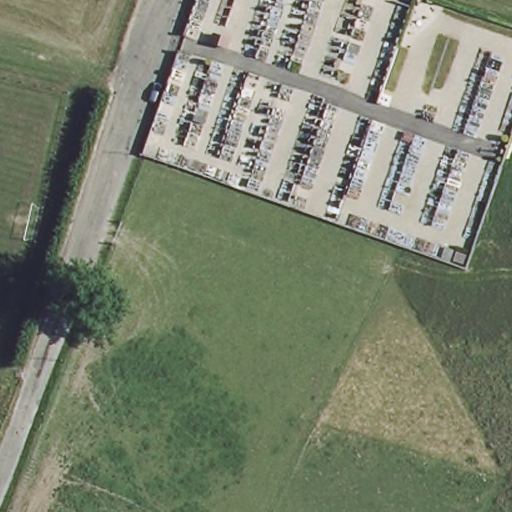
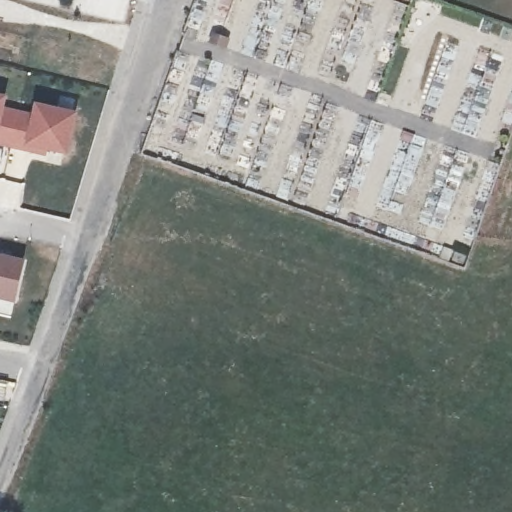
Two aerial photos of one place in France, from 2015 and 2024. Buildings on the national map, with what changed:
new [(14,106),(43,113),(47,99),(88,109),(78,151),(51,144),(50,150),(0,138),(0,91),(16,95),(14,106)]
new [(16,301),(0,298),(0,253),(26,259),(16,301)]

